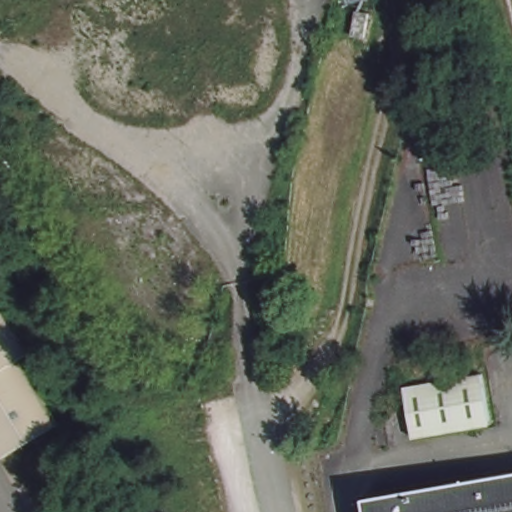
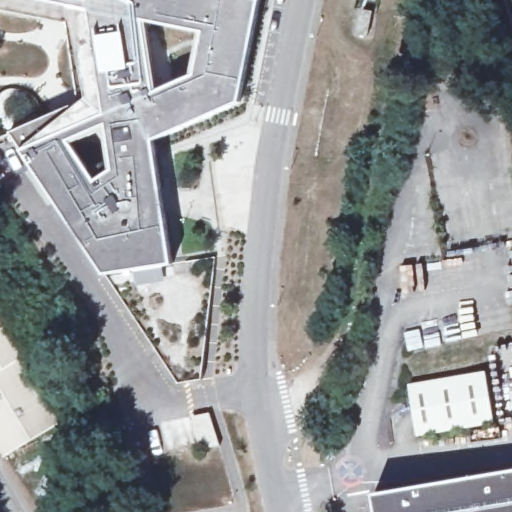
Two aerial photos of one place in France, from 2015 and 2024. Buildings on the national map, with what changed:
new [(24,150),(10,133),(79,103),(65,21),(0,9),(0,0),(259,0),(239,103),(153,140),(171,263),(215,257),(201,379),(178,382),(106,272),(24,150)]
demolished [(221,14),(74,0),(222,0),(221,14)]
new [(355,34),(360,10),(371,12),(367,37),(355,34)]
demolished [(207,30),(264,32),(263,40),(258,83),(184,83),(167,89),(142,89),(132,86),(131,59),(201,32),(207,30)]
demolished [(131,59),(132,86),(117,81),(117,34),(201,32),(131,59)]
unchanged [(0,327),(0,292),(16,316),(0,327)]
unchanged [(8,455),(0,443),(0,329),(62,420),(8,455)]
unchanged [(495,423),(419,435),(411,384),(488,371),(495,423)]
new [(195,416),(211,413),(221,445),(201,449),(195,416)]
unchanged [(512,471),(512,512),(381,512),(378,494),(512,471)]

